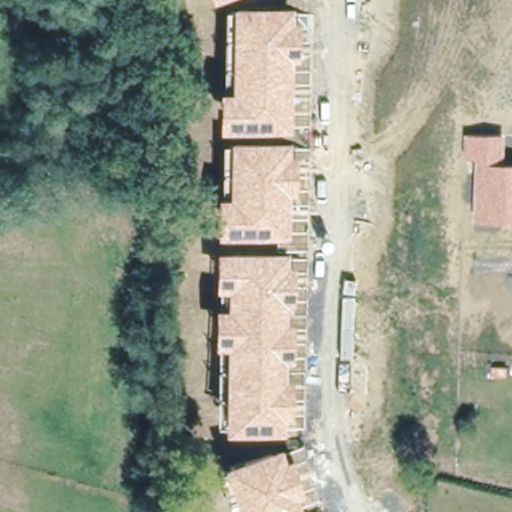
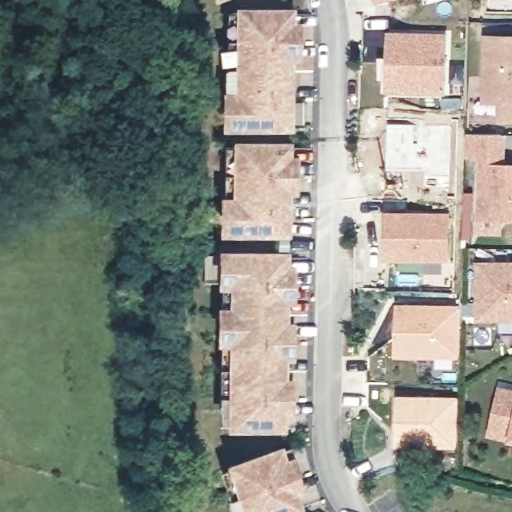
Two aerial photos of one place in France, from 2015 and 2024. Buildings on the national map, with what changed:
unchanged [(211,0),(226,0),(212,5),(211,0)]
new [(389,0),(375,3),(375,0),(389,0)]
unchanged [(294,8),(295,25),(302,26),(302,61),(295,61),(292,132),(220,131),(218,91),(231,90),(234,7),(294,8)]
new [(387,30),(446,32),(445,95),(386,91),(387,30)]
new [(512,38),(512,120),(501,120),(502,102),(486,101),(487,37),(512,38)]
new [(384,120),(454,121),(453,174),(384,172),(384,120)]
unchanged [(507,165),(512,165),(512,222),(474,221),(475,160),(465,160),(465,133),(507,135),(507,165)]
unchanged [(291,142),(291,156),(298,156),(297,195),(290,195),(289,235),(216,236),(216,195),(230,196),(230,140),(291,142)]
new [(385,257),(386,213),(447,215),(447,260),(385,257)]
unchanged [(289,252),(289,266),(295,265),(295,305),(287,306),(286,323),(293,325),(293,360),(285,360),(285,381),(292,380),(292,417),(283,417),(284,431),(224,430),(226,345),(214,345),(215,306),(227,306),(227,289),(215,290),(216,250),(289,252)]
new [(476,260),(512,260),(512,322),(474,320),(476,260)]
new [(459,305),(458,357),(394,356),(397,303),(459,305)]
new [(486,436),(497,386),(512,389),(512,442),(507,441),(486,436)]
new [(458,395),(457,448),(395,445),(396,393),(458,395)]
unchanged [(281,446),(285,460),(293,458),(304,493),(297,497),(301,510),(295,512),(241,512),(223,465),(281,446)]

